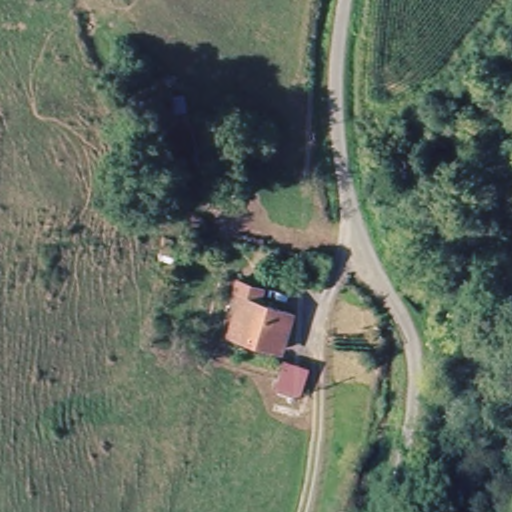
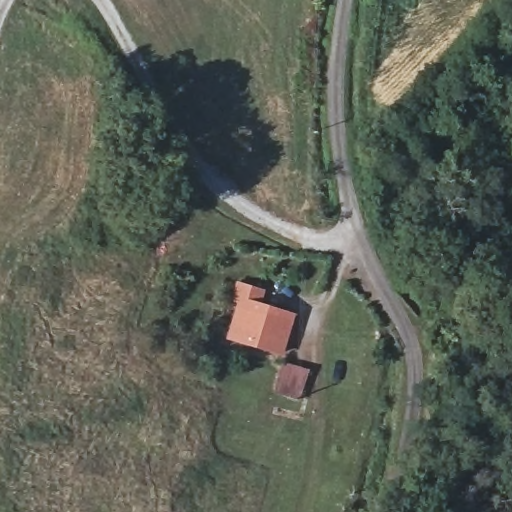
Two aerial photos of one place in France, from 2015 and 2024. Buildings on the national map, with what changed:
unchanged [(235,302),(227,301),(232,280),(259,285),(256,301),(291,308),(282,351),(227,340),(235,302)]
unchanged [(286,360),(312,364),(307,395),(281,390),(286,360)]

